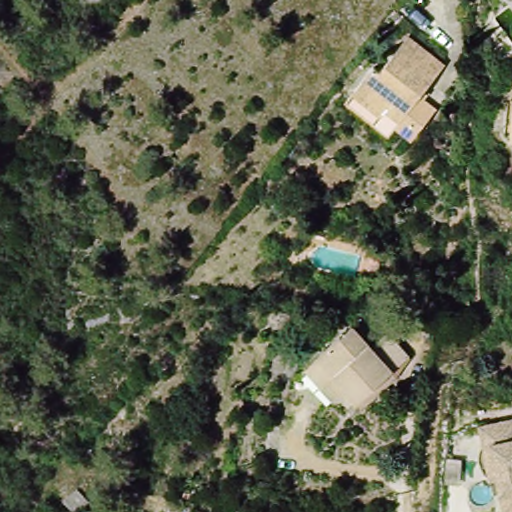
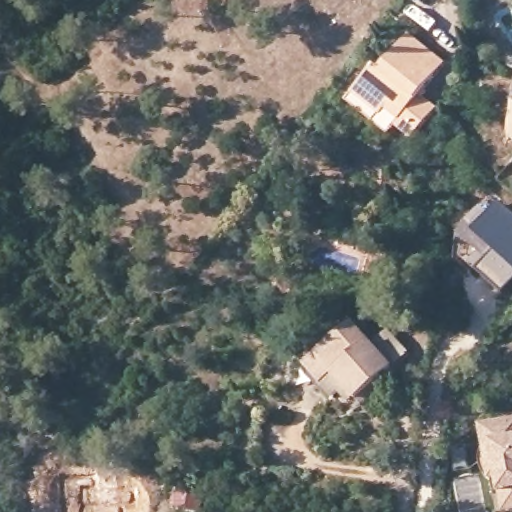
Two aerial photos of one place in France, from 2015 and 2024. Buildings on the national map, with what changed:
unchanged [(445,61),(422,93),(438,105),(415,136),(396,121),(400,116),(388,105),(383,112),(355,89),(374,65),(379,70),(409,33),(445,61)]
unchanged [(512,84),(512,143),(505,138),(512,84)]
new [(471,232),(500,200),(512,212),(512,284),(503,293),(481,270),(494,253),(471,232)]
unchanged [(312,364),(323,354),(357,323),(398,367),(365,399),(347,381),(337,391),(312,364)]
unchanged [(512,511),(503,512),(496,512),(479,426),(512,422),(512,511)]
unchanged [(92,504),(83,512),(73,512),(66,505),(81,491),(92,504)]

